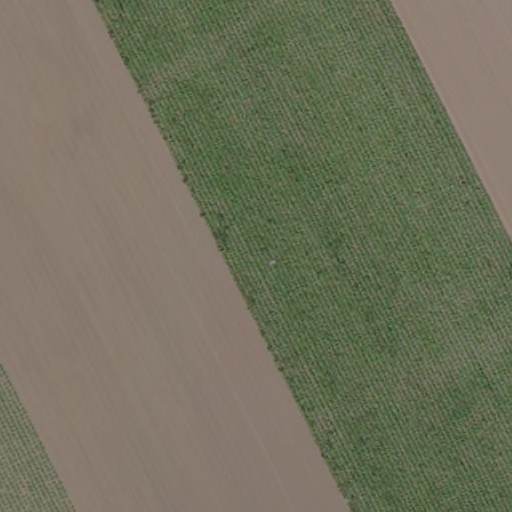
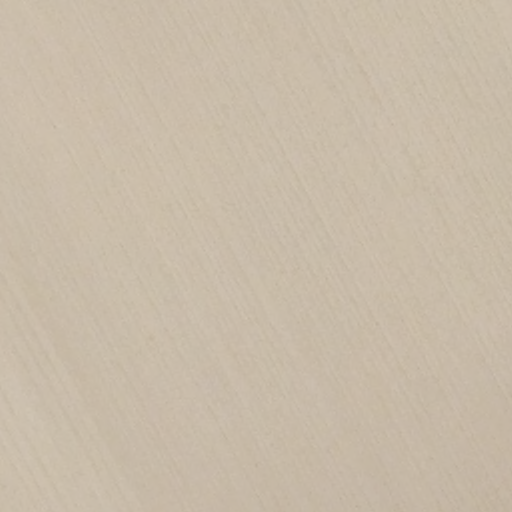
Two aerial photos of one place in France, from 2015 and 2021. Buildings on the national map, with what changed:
[]

